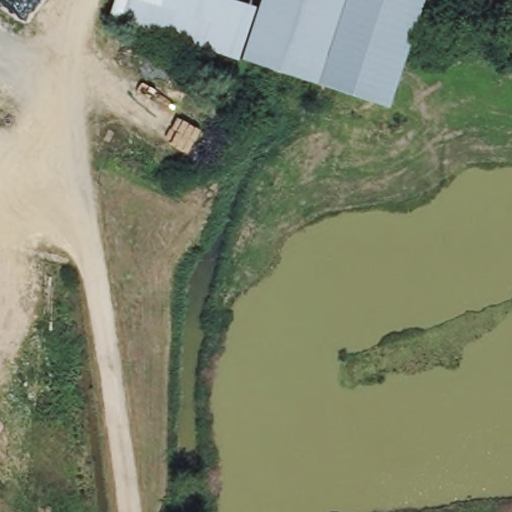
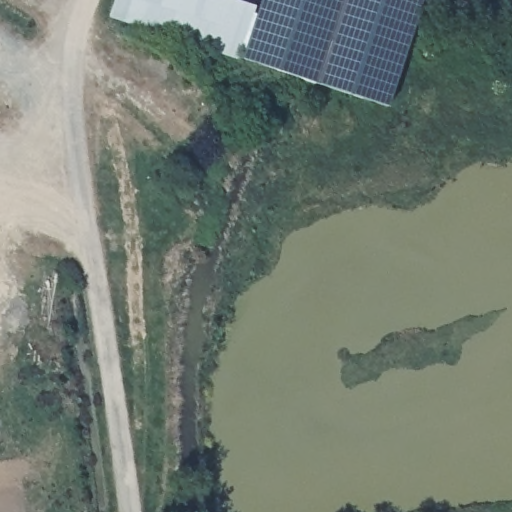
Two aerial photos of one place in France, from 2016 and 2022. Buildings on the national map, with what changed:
unchanged [(251,60),(107,21),(113,0),(221,0),(264,16),(251,60)]
unchanged [(251,60),(264,16),(269,0),(425,0),(390,107),(262,66),(251,60)]
unchanged [(512,17),(463,0),(512,0),(512,17)]

